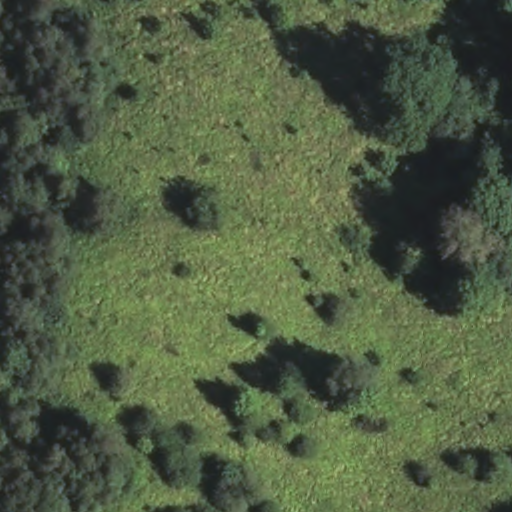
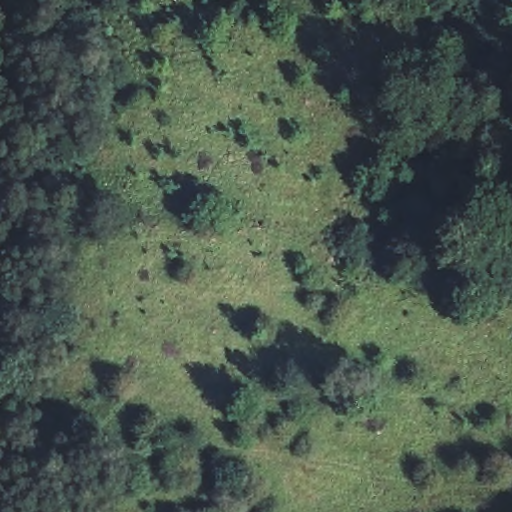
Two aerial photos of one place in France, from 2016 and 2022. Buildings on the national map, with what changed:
[]

